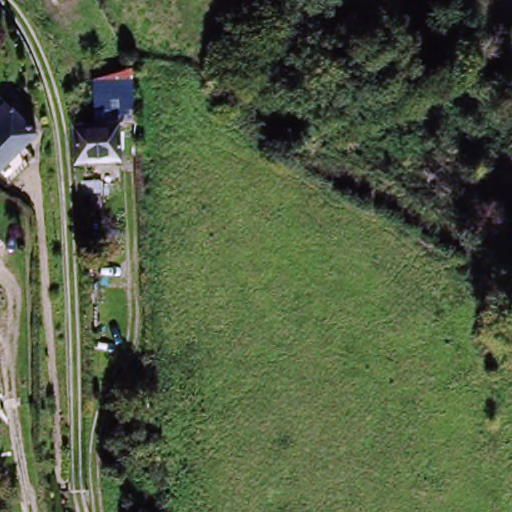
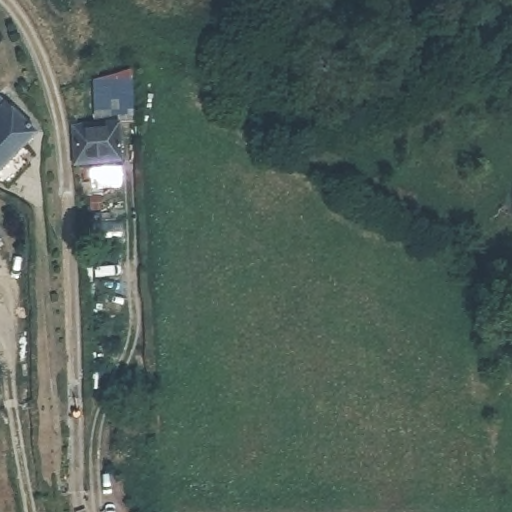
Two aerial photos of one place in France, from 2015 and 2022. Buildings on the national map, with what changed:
unchanged [(470,5),(478,25),(467,30),(460,10),(470,5)]
unchanged [(493,39),(486,20),(491,17),(497,15),(505,33),(497,36),(493,39)]
unchanged [(0,102),(34,133),(15,155),(0,141),(0,102)]
unchanged [(116,130),(117,166),(70,168),(70,140),(69,130),(116,130)]
unchanged [(0,141),(15,155),(0,173),(0,141)]
unchanged [(0,251),(0,248),(1,250),(0,251)]

